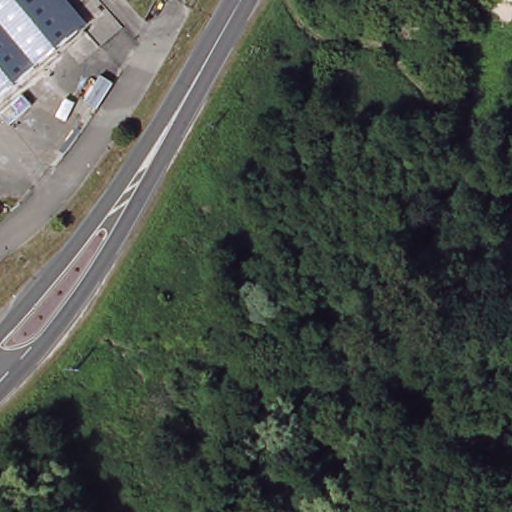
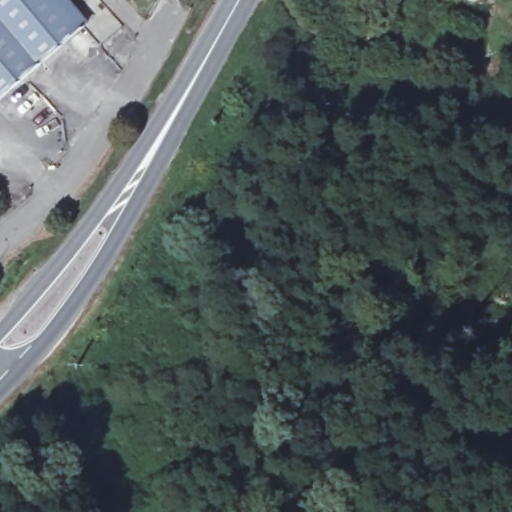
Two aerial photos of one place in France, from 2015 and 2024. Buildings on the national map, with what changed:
unchanged [(57,46),(0,96),(0,0),(57,0),(80,27),(57,46)]

